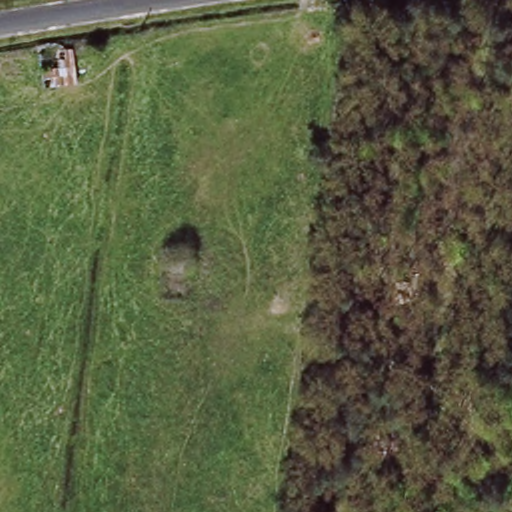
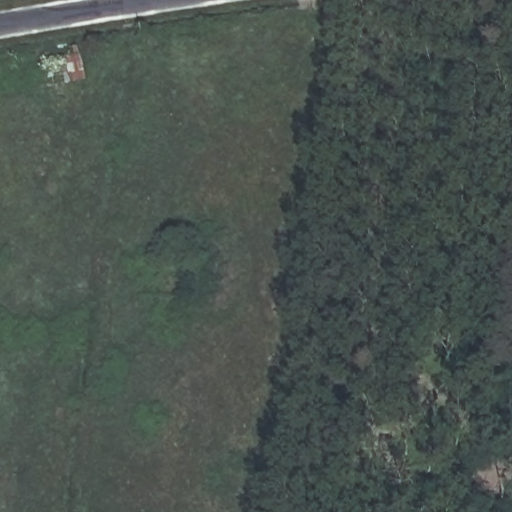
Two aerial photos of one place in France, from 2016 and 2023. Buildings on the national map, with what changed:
unchanged [(35,90),(33,71),(49,69),(48,48),(67,46),(73,85),(35,90)]

